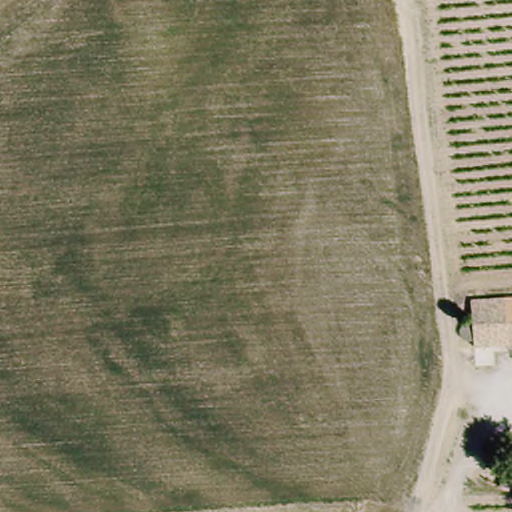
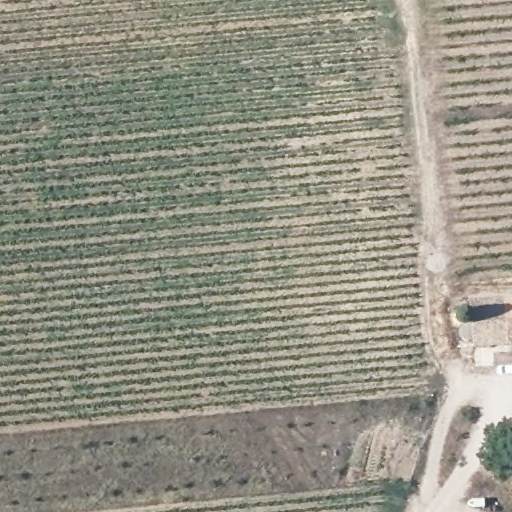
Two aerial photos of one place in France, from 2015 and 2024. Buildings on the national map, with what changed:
unchanged [(504,347),(501,298),(512,297),(512,347),(504,347)]
unchanged [(474,341),(468,342),(465,341),(462,338),(460,333),(462,328),(467,325),(473,325),(474,341)]

